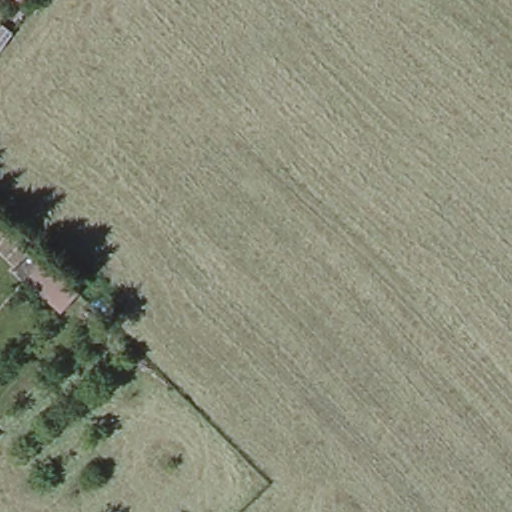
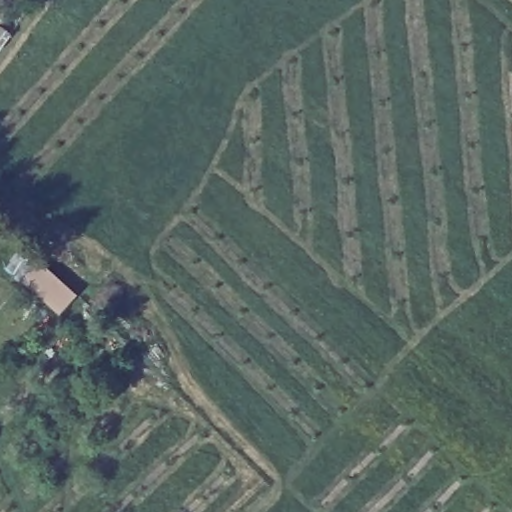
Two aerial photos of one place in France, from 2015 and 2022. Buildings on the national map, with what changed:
unchanged [(39,257),(77,290),(59,310),(22,278),(39,257)]

